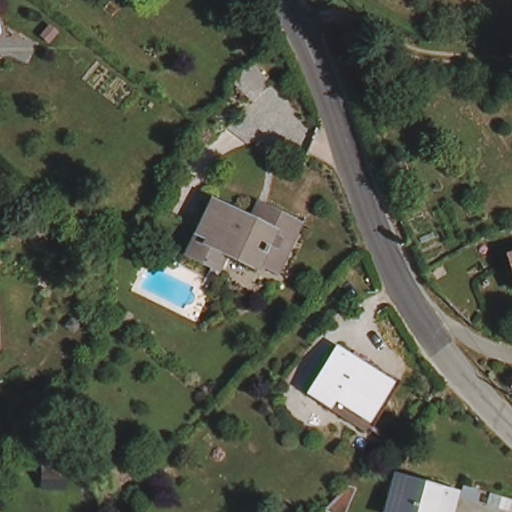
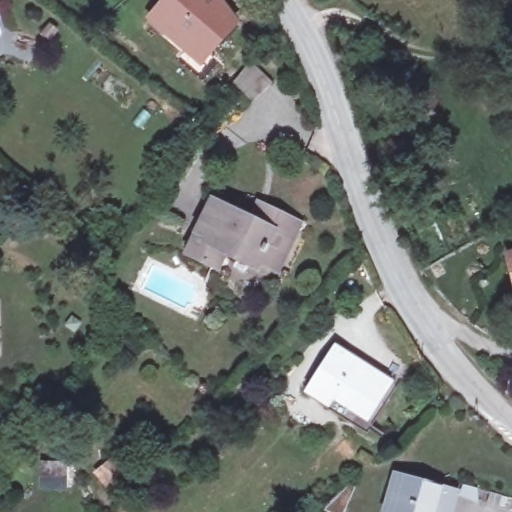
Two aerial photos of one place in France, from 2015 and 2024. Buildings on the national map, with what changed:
new [(159,0),(225,0),(241,22),(200,67),(142,19),(159,0)]
new [(251,60),(272,81),(251,102),(231,82),(251,60)]
unchanged [(275,265),(255,256),(255,258),(225,243),(215,262),(185,247),(213,192),(247,210),(255,193),(268,201),(299,219),(275,265)]
unchanged [(512,250),(512,282),(504,253),(512,250)]
unchanged [(333,401),(310,389),(335,341),(395,373),(375,412),(371,421),(333,401)]
unchanged [(61,459),(60,483),(38,483),(39,459),(61,459)]
unchanged [(447,507),(441,506),(439,512),(384,512),(385,507),(396,471),(453,487),(447,507)]
unchanged [(350,480),(355,483),(342,512),(340,512),(325,505),(346,484),(350,480)]
unchanged [(512,494),(512,507),(486,500),(490,488),(512,494)]

